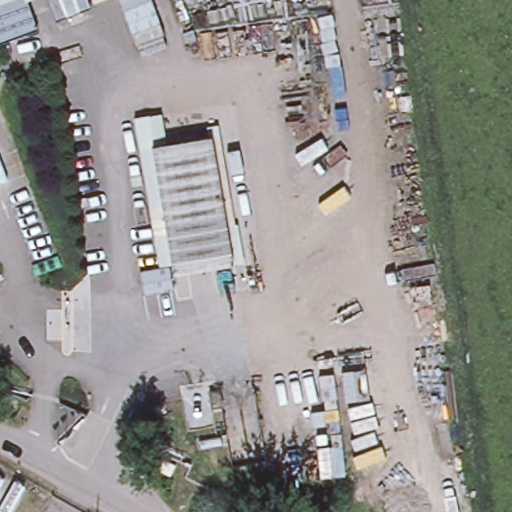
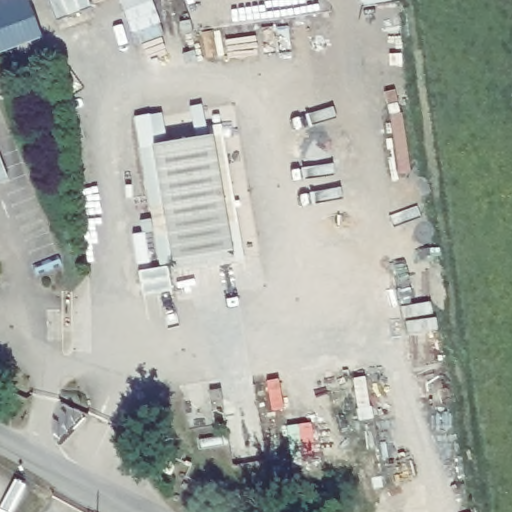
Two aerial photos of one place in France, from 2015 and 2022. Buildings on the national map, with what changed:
unchanged [(118,1),(55,24),(47,0),(118,0),(118,1)]
unchanged [(165,44),(150,48),(152,57),(136,63),(120,7),(138,0),(144,0),(165,44)]
unchanged [(41,30),(0,45),(0,6),(8,3),(12,14),(32,7),(41,30)]
unchanged [(202,139),(226,267),(167,277),(145,149),(202,139)]
unchanged [(157,467),(160,461),(172,467),(168,475),(166,478),(154,473),(157,467)]

